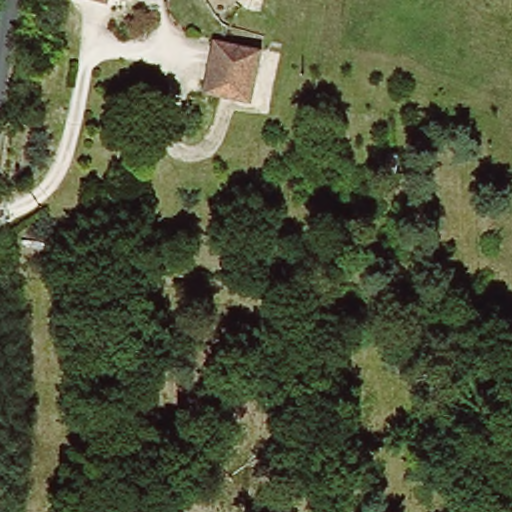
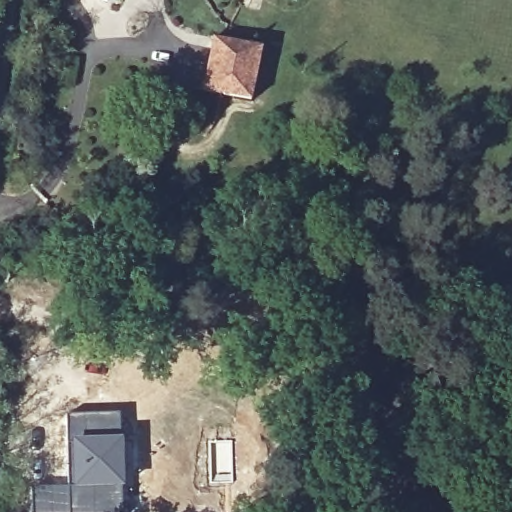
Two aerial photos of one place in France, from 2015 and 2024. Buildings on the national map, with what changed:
unchanged [(212,42),(259,52),(247,106),(198,94),(212,42)]
unchanged [(393,166),(405,167),(401,193),(390,193),(393,166)]
unchanged [(351,172),(344,217),(327,213),(335,170),(351,172)]
new [(125,459),(125,512),(70,512),(68,486),(66,415),(121,413),(125,459)]
new [(70,512),(31,512),(30,488),(68,486),(70,512)]

